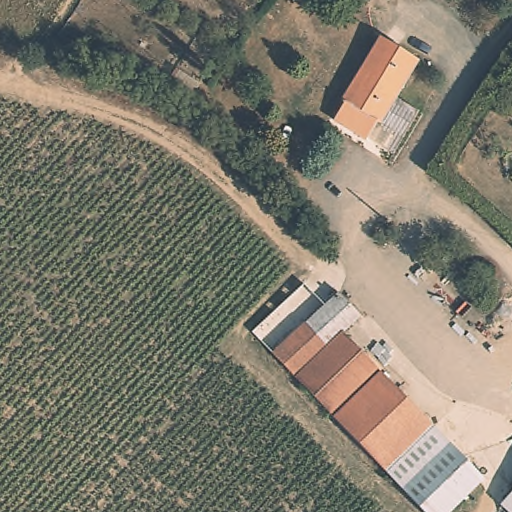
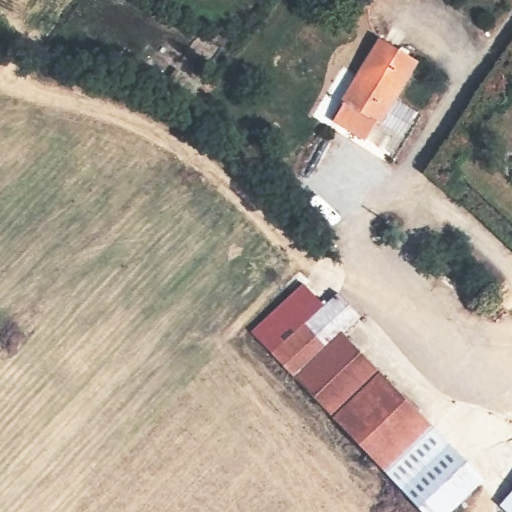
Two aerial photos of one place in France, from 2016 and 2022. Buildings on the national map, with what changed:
unchanged [(402,138),(379,124),(377,123),(366,141),(333,121),(344,103),(342,101),(380,38),(417,61),(395,99),(417,113),(402,138)]
unchanged [(200,86),(191,98),(167,81),(176,70),(200,86)]
unchanged [(277,354),(343,292),(366,316),(347,333),(334,346),(332,344),(298,376),(277,354)]
unchanged [(332,344),(334,346),(347,333),(437,428),(391,474),(298,376),(332,344)]
unchanged [(510,512),(502,504),(512,493),(512,512),(510,512)]

